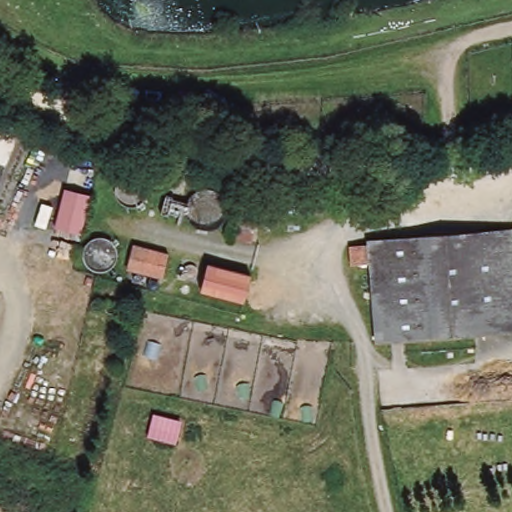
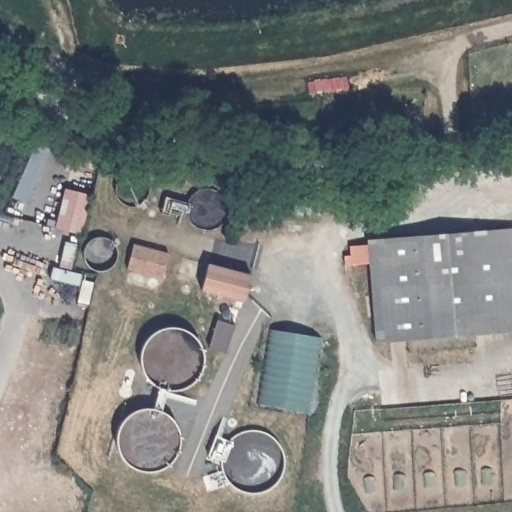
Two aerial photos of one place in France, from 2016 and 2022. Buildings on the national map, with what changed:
unchanged [(90,196),(81,234),(55,227),(65,190),(90,196)]
unchanged [(365,239),(512,231),(512,333),(373,341),(367,266),(365,239)]
unchanged [(135,242),(169,252),(164,281),(128,271),(135,242)]
unchanged [(252,274),(245,302),(200,292),(208,262),(252,274)]
new [(262,402),(273,330),(320,338),(309,409),(262,402)]
unchanged [(154,415),(181,421),(175,443),(148,436),(154,415)]

